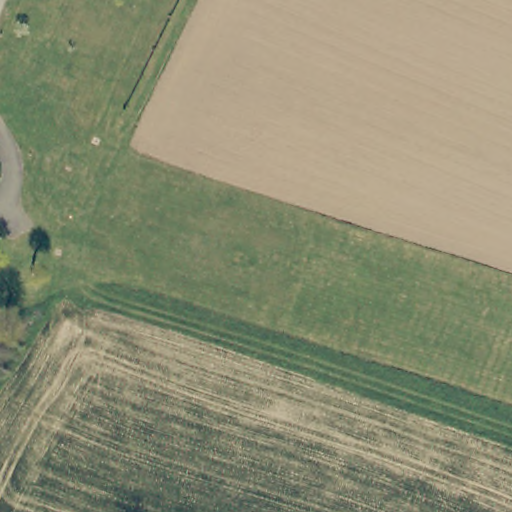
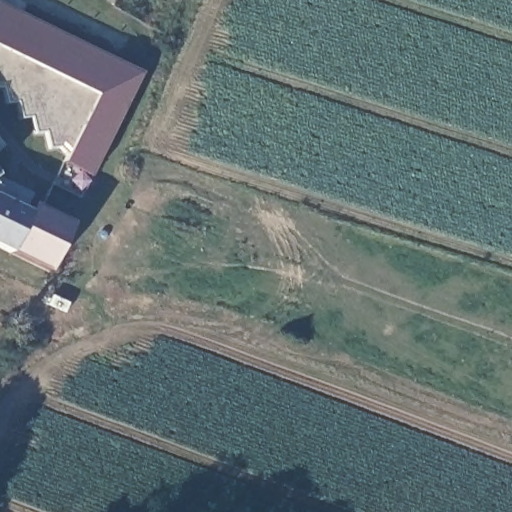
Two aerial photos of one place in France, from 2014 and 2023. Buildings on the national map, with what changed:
new [(61,162),(67,150),(60,146),(48,149),(45,131),(35,132),(32,119),(21,119),(18,103),(7,102),(5,89),(0,89),(0,1),(140,72),(91,176),(61,162)]
new [(10,251),(0,246),(0,198),(29,211),(33,204),(74,221),(50,271),(10,251)]

